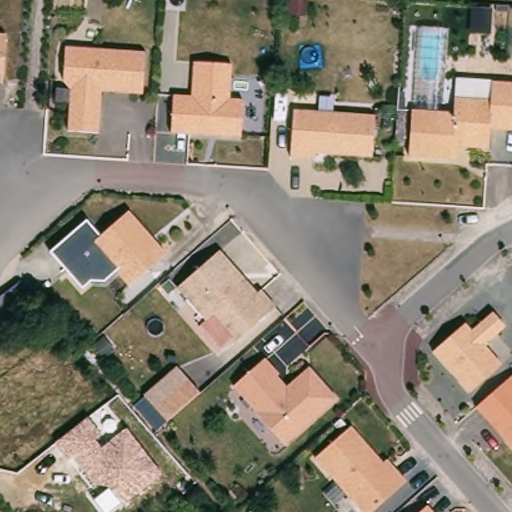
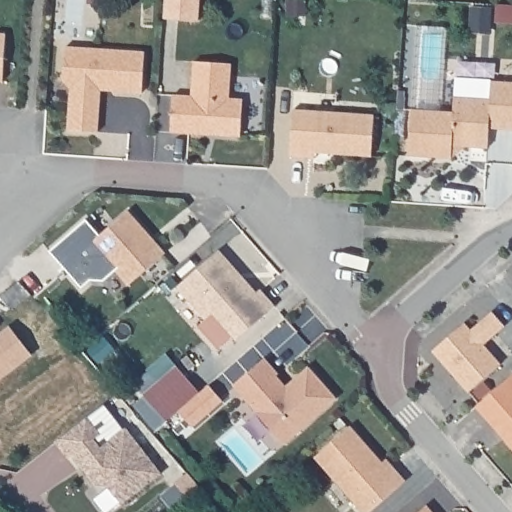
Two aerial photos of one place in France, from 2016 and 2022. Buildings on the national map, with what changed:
unchanged [(302,16),(285,15),(285,0),(294,0),(302,1),(302,16)]
unchanged [(5,35),(2,82),(0,82),(0,35),(5,35)]
unchanged [(69,89),(62,81),(65,48),(144,53),(142,94),(115,92),(99,103),(97,134),(67,132),(69,102),(70,89),(69,89)]
unchanged [(192,135),(170,133),(172,96),(190,97),(191,85),(192,62),(230,65),(227,100),(242,100),(240,137),(216,136),(213,136),(192,135)]
unchanged [(487,149),(451,146),(451,159),(407,156),(410,110),(452,112),(452,97),(488,98),(489,81),(512,82),(512,130),(488,129),(487,149)]
unchanged [(306,159),(288,157),(292,111),(373,116),(371,157),(314,154),(313,159),(306,159)]
unchanged [(166,253),(129,287),(92,244),(127,211),(166,253)]
unchanged [(92,244),(114,270),(103,281),(91,281),(82,288),(49,252),(87,219),(101,235),(92,244)]
unchanged [(256,293),(260,290),(275,307),(236,341),(212,313),(205,320),(176,288),(219,251),(256,293)]
unchanged [(0,319),(0,295),(19,282),(32,296),(0,319)]
unchanged [(483,344),(500,365),(469,392),(432,351),(465,322),(471,330),(492,312),(505,325),(483,344)]
new [(9,332),(28,359),(0,380),(0,339),(9,332)]
unchanged [(113,350),(104,358),(94,347),(103,338),(113,350)]
unchanged [(255,415),(255,414),(232,387),(263,360),(277,376),(275,377),(285,388),(307,368),(335,400),(283,447),(255,415)]
unchanged [(169,422),(156,432),(132,405),(144,395),(178,367),(200,392),(169,422)]
unchanged [(512,374),(512,447),(476,406),(512,374)]
unchanged [(109,487),(93,486),(71,456),(66,460),(55,443),(88,419),(101,437),(96,440),(101,448),(127,428),(161,475),(122,505),(109,487)]
unchanged [(405,482),(401,485),(371,512),(362,512),(314,458),(350,427),(382,463),(386,460),(405,482)]
unchanged [(427,506),(432,512),(419,512),(427,506)]

